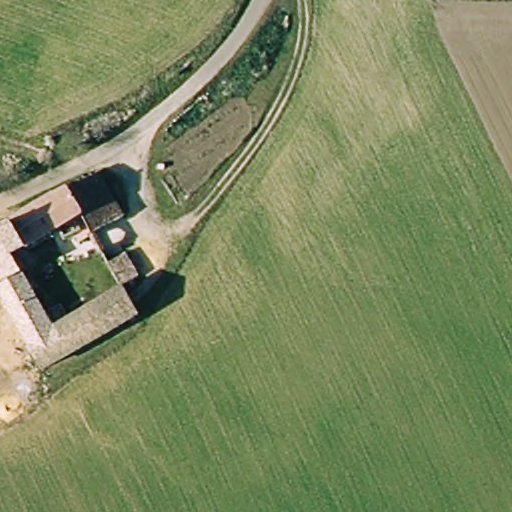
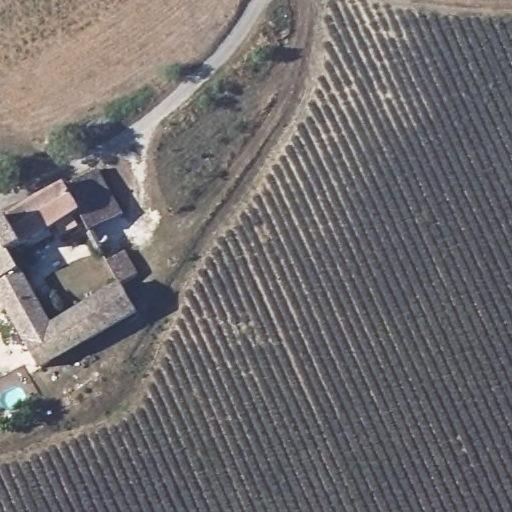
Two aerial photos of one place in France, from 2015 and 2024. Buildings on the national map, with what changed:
unchanged [(116,224),(85,237),(63,196),(93,178),(116,224)]
unchanged [(53,244),(22,260),(46,306),(59,300),(68,317),(116,292),(132,320),(36,373),(4,305),(0,297),(0,232),(63,196),(85,237),(61,250),(53,244)]
unchanged [(127,286),(116,292),(100,265),(117,256),(130,282),(127,286)]

